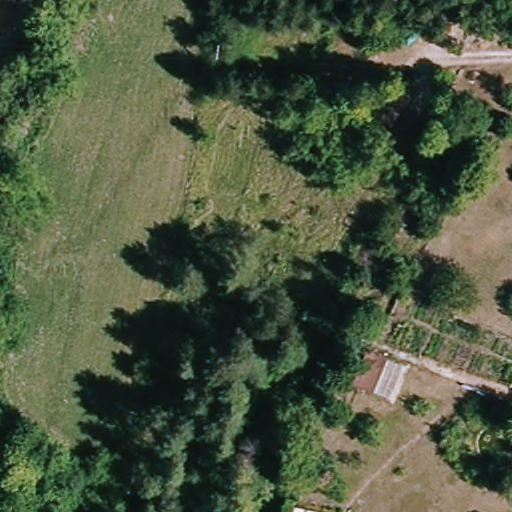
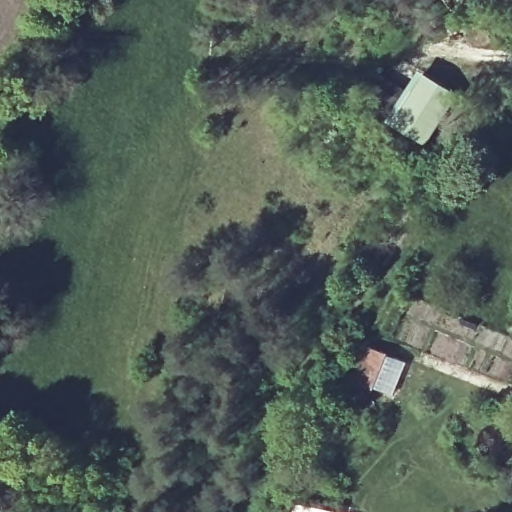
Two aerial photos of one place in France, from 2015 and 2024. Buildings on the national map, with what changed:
new [(457,93),(425,146),(386,119),(363,104),(382,75),(407,89),(419,70),(457,93)]
unchanged [(367,347),(408,366),(395,400),(353,380),(367,347)]

